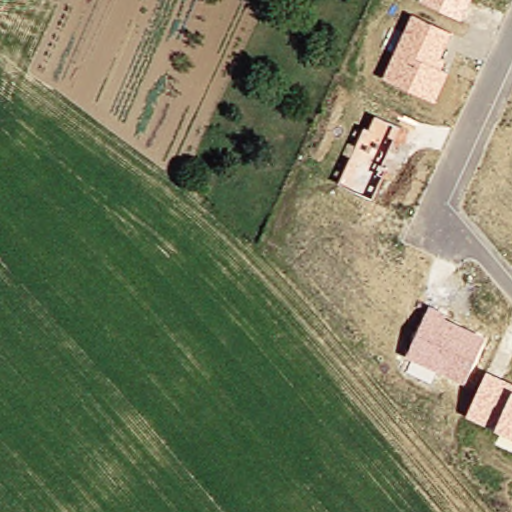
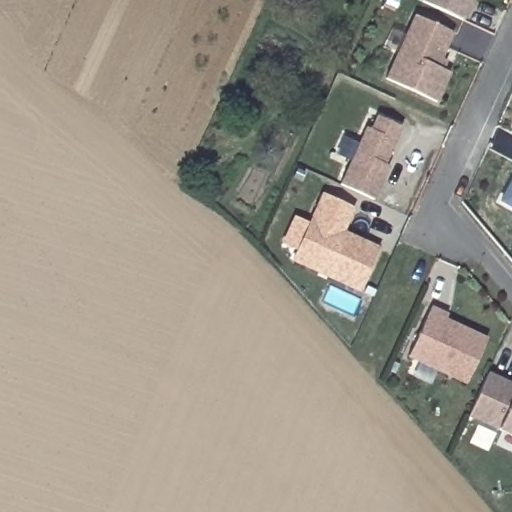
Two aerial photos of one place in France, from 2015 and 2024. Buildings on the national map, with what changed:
unchanged [(421,0),(470,0),(461,20),(421,0)]
unchanged [(451,32),(440,57),(446,60),(441,70),(448,73),(434,103),(384,79),(413,15),(451,32)]
unchanged [(401,128),(384,167),(388,167),(373,202),(339,186),(364,129),(371,131),(376,117),(401,128)]
new [(504,201),(512,186),(512,206),(504,201)]
new [(344,232),(379,247),(359,293),(289,262),(294,251),(279,246),(293,217),(308,224),(320,195),(354,209),(344,232)]
unchanged [(447,315),(446,319),(484,337),(464,384),(407,357),(429,308),(447,315)]
unchanged [(512,384),(512,438),(497,431),(468,417),(487,373),(512,384)]

